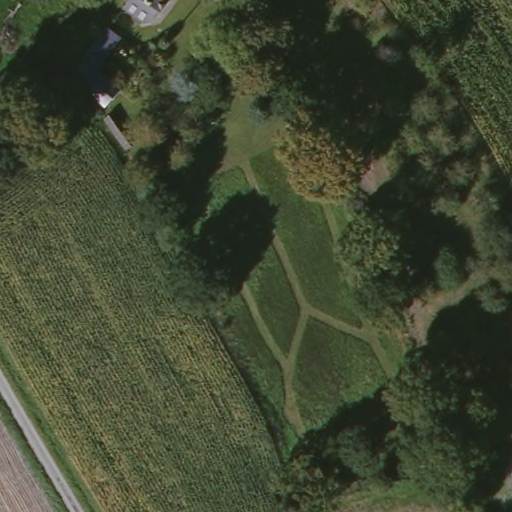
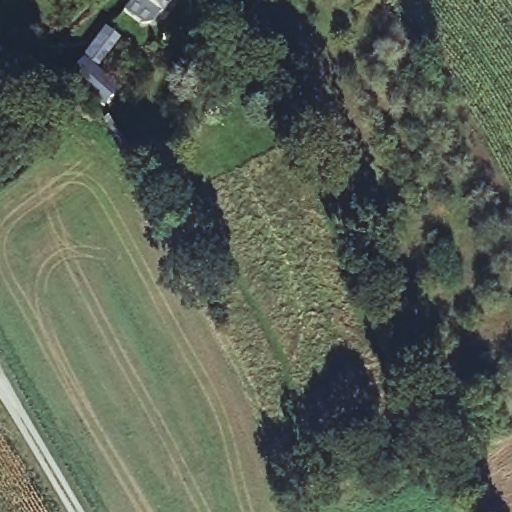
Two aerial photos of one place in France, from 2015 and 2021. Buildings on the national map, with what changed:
unchanged [(173,0),(161,19),(133,0),(173,0)]
unchanged [(83,64),(92,51),(97,45),(107,53),(103,59),(95,71),(83,64)]
unchanged [(82,67),(115,94),(102,111),(69,84),(82,67)]

